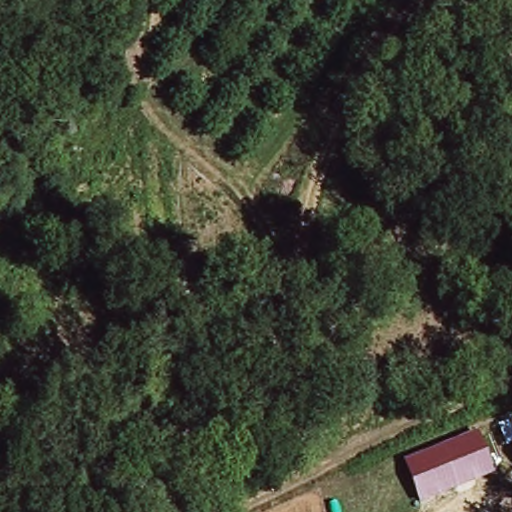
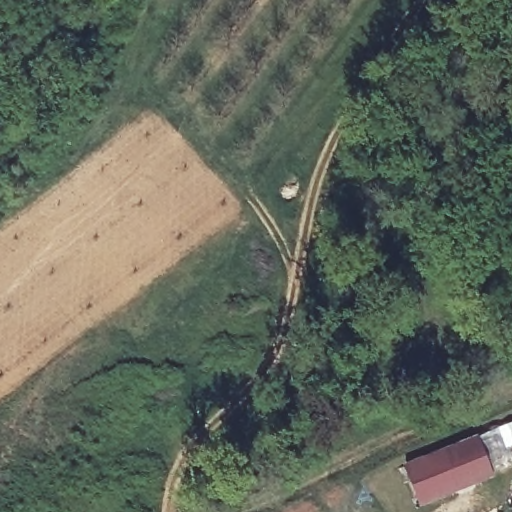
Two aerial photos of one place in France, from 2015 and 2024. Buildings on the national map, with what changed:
unchanged [(477,438),(496,478),(420,507),(403,467),(477,438)]

